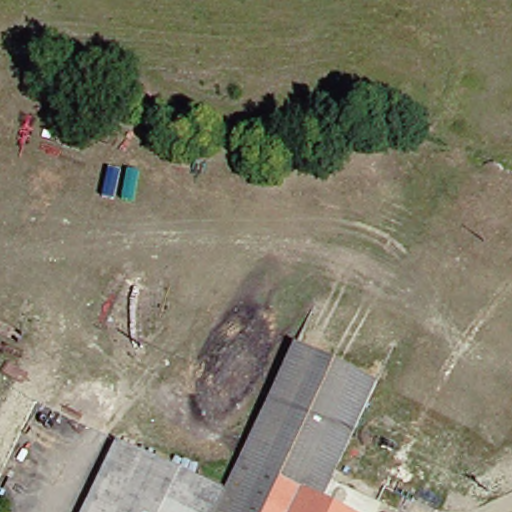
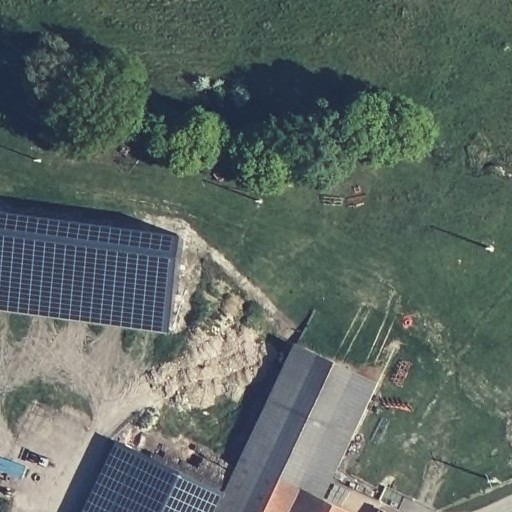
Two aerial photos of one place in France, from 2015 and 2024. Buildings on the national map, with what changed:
new [(0,312),(0,210),(186,235),(173,334),(0,312)]
unchanged [(222,497),(295,349),(376,390),(320,505),(300,495),(291,512),(214,512),(222,497)]
unchanged [(114,443),(141,457),(222,497),(214,512),(78,512),(114,443)]
unchanged [(334,512),(291,512),(300,495),(320,505),(334,512)]

